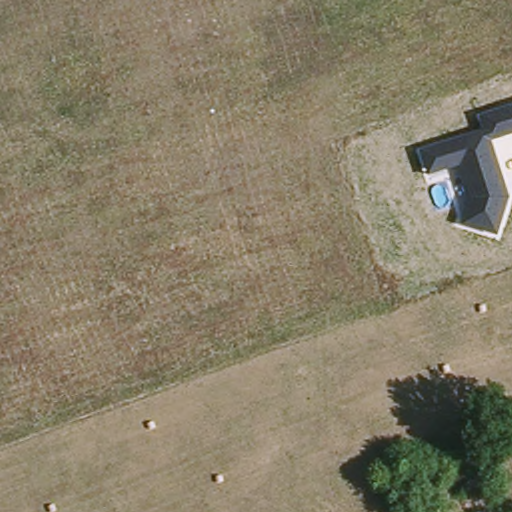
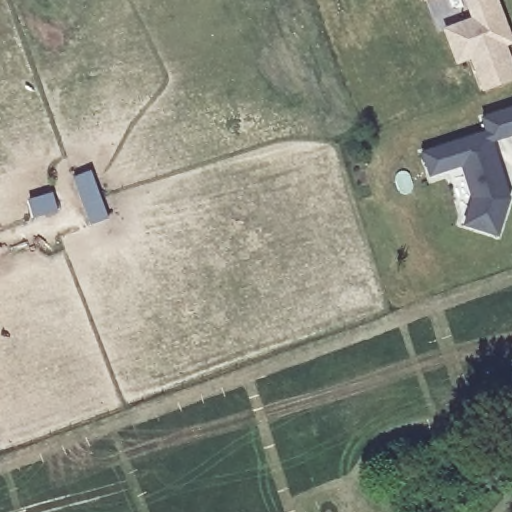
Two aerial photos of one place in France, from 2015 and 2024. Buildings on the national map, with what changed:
new [(473,15),(468,0),(496,0),(507,29),(511,37),(503,40),(512,65),(512,75),(483,86),(471,52),(457,58),(445,25),(459,20),(473,15)]
unchanged [(493,142),(511,198),(498,233),(460,221),(467,192),(460,168),(430,177),(422,150),(482,130),(478,117),(512,107),(512,137),(493,142)]

